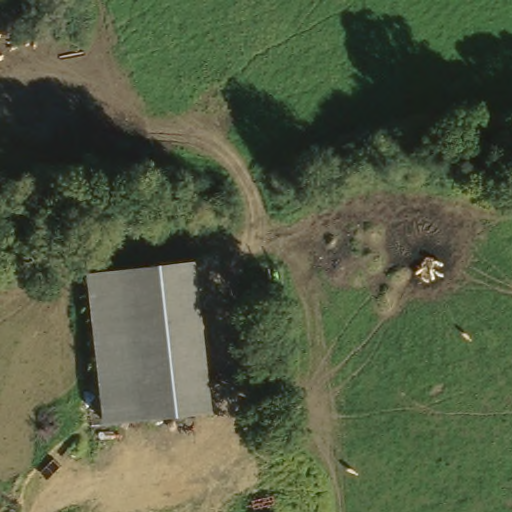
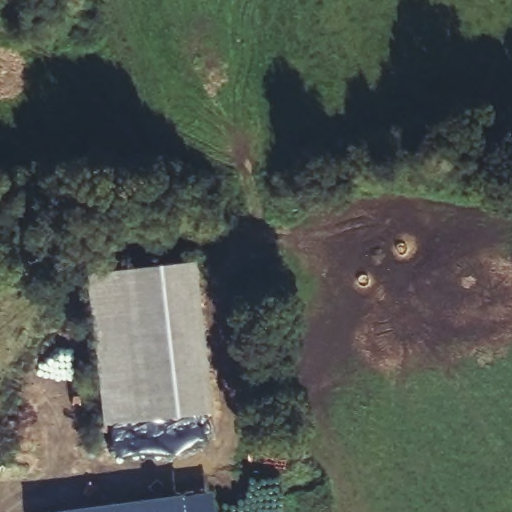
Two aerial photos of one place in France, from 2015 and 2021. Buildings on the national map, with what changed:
unchanged [(84,273),(193,260),(211,409),(102,422),(84,273)]
new [(211,490),(214,512),(55,512),(211,490)]

